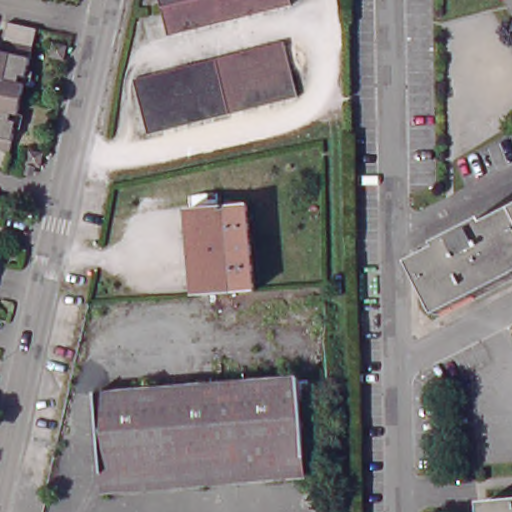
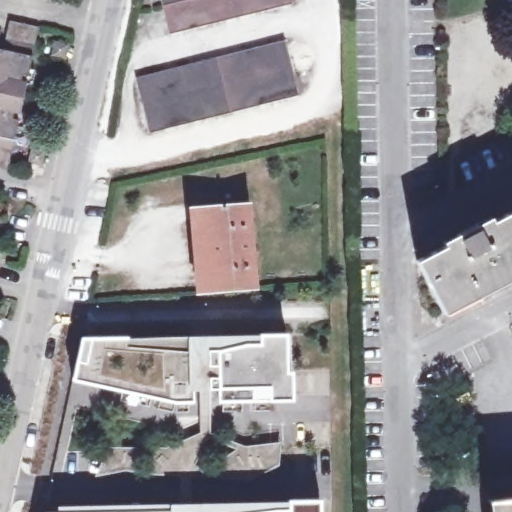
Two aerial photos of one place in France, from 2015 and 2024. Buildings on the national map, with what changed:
unchanged [(162,0),(294,0),(295,3),(170,34),(163,5),(162,0)]
unchanged [(3,18),(0,35),(0,18),(3,18)]
unchanged [(10,50),(16,21),(45,27),(34,78),(27,76),(26,82),(32,83),(27,113),(20,112),(18,118),(25,119),(15,168),(0,165),(0,49),(10,50)]
unchanged [(137,78),(285,41),(299,96),(150,133),(137,78)]
unchanged [(57,42),(70,45),(67,58),(53,54),(57,42)]
unchanged [(34,148),(47,151),(43,164),(32,161),(34,148)]
unchanged [(195,207),(250,202),(258,289),(202,294),(195,207)]
unchanged [(457,239),(477,229),(480,233),(512,216),(512,277),(442,313),(417,265),(460,243),(457,239)]
new [(109,447),(167,449),(202,430),(200,389),(193,389),(194,402),(177,403),(72,380),(80,336),(125,336),(185,335),(255,335),(283,334),(285,372),(290,372),(291,400),(267,400),(267,386),(211,389),(212,430),(245,445),(282,440),(280,463),(253,472),(192,473),(182,473),(97,476),(109,447)]
demolished [(98,402),(301,385),(308,465),(105,481),(98,402)]
new [(170,510),(170,502),(319,502),(319,512),(74,512),(170,510)]
unchanged [(512,503),(512,512),(495,512),(494,505),(512,503)]

